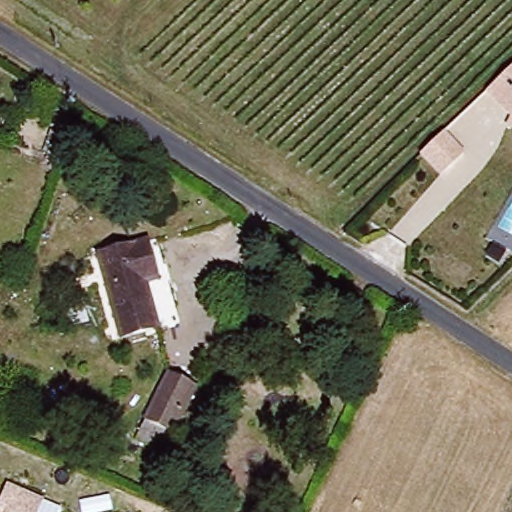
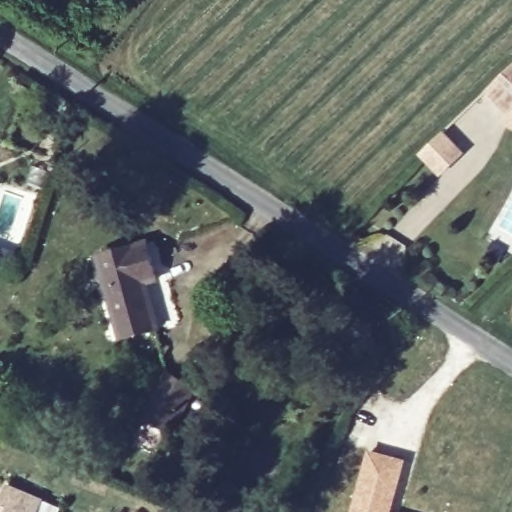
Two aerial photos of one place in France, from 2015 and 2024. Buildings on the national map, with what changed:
unchanged [(512,64),(512,117),(485,91),(512,64)]
unchanged [(512,118),(512,129),(507,127),(512,118)]
unchanged [(443,130),(466,153),(441,175),(418,154),(443,130)]
unchanged [(145,272),(162,324),(127,337),(99,259),(145,242),(155,266),(145,272)]
unchanged [(166,382),(186,393),(196,395),(172,444),(141,430),(146,422),(166,382)]
new [(406,461),(391,512),(352,512),(369,451),(406,461)]
unchanged [(35,512),(0,512),(0,492),(5,481),(42,497),(35,512)]

